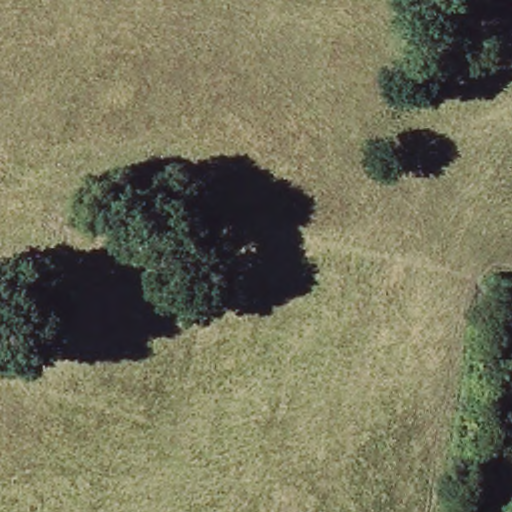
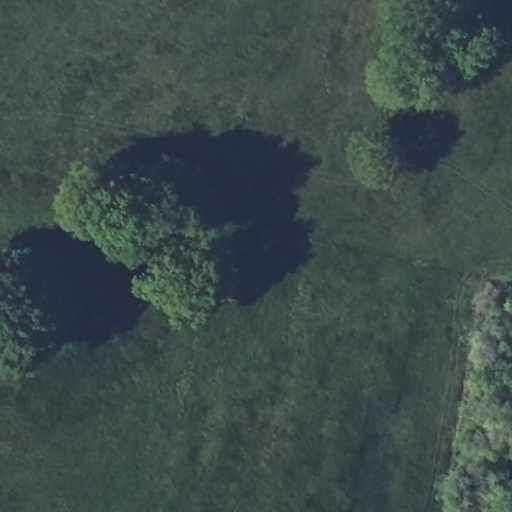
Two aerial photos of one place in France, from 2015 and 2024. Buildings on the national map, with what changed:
[]

